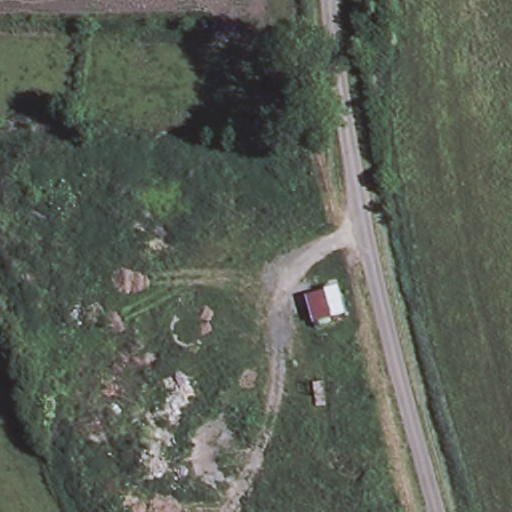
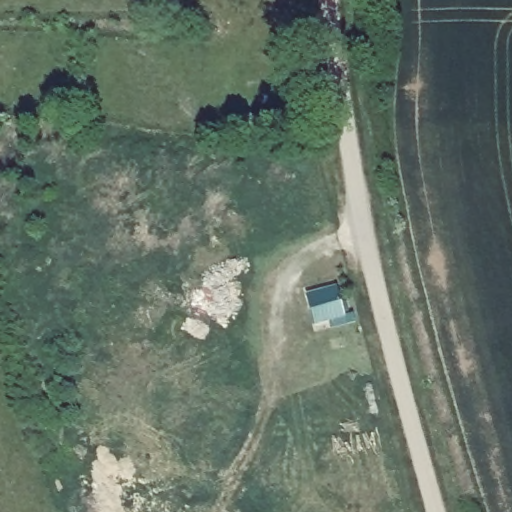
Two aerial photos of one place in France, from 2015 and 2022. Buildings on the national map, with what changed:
unchanged [(347,319),(312,328),(304,298),(338,289),(347,319)]

